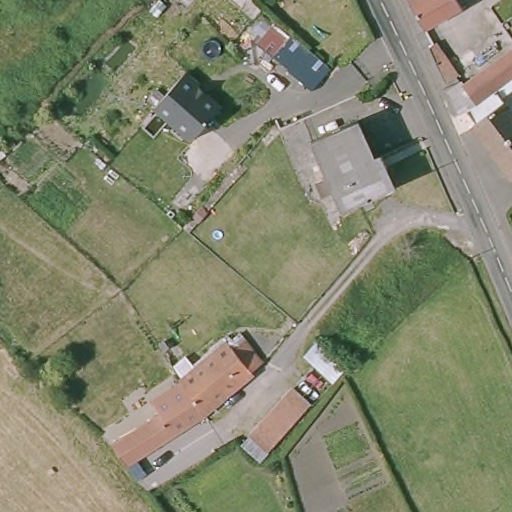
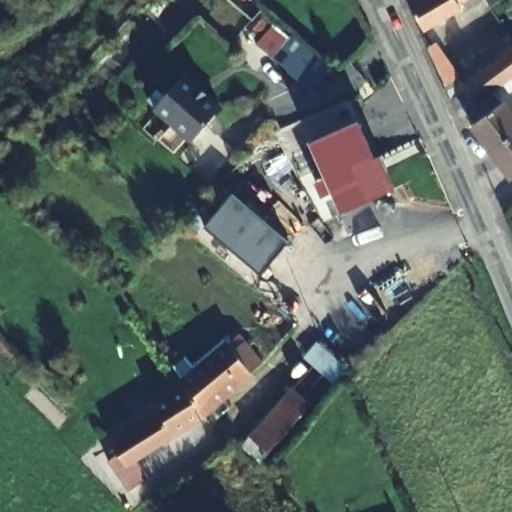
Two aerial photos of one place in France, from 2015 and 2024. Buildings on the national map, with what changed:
unchanged [(428,27),(410,0),(457,0),(459,4),(428,27)]
unchanged [(288,32),(331,70),(316,87),(269,50),(288,32)]
unchanged [(420,47),(429,42),(452,74),(437,84),(420,47)]
unchanged [(489,88),(464,106),(459,110),(448,95),(459,87),(455,82),(509,45),(512,49),(512,71),(509,72),(489,88)]
unchanged [(466,118),(470,114),(464,106),(489,88),(509,72),(512,76),(512,83),(501,92),(512,108),(512,127),(486,147),(466,118)]
unchanged [(223,107),(191,142),(153,107),(186,74),(223,107)]
unchanged [(383,154),(390,171),(381,176),(388,194),(341,212),(314,143),(359,127),(372,158),(383,154)]
unchanged [(512,177),(511,175),(507,177),(486,147),(512,127),(512,177)]
new [(283,245),(258,281),(198,229),(226,197),(283,245)]
new [(133,320),(127,325),(120,315),(126,310),(133,320)]
unchanged [(231,341),(238,348),(250,339),(265,358),(202,408),(186,386),(182,380),(231,341)]
unchanged [(147,473),(138,480),(113,441),(161,411),(153,398),(182,380),(186,386),(202,408),(206,414),(138,458),(147,473)]
unchanged [(251,434),(291,387),(309,401),(269,448),(251,434)]

